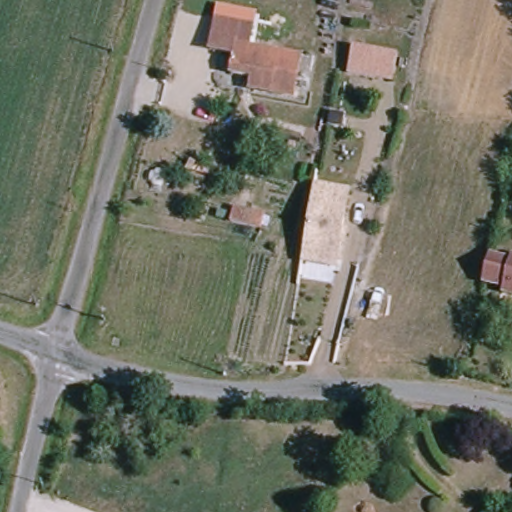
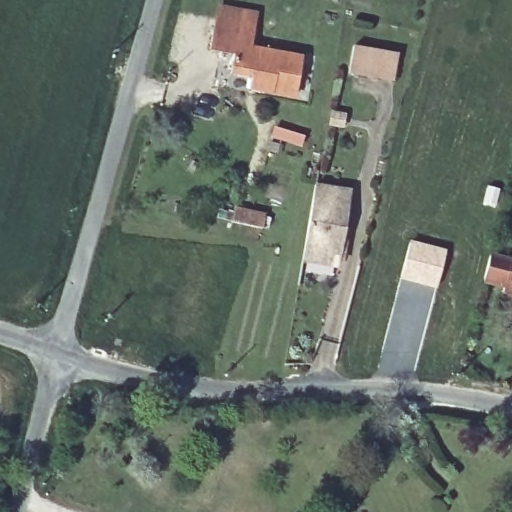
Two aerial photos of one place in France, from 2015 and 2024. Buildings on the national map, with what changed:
unchanged [(211,47),(214,17),(253,21),(251,41),(237,39),(236,50),(211,47)]
unchanged [(302,47),(297,89),(254,84),(255,71),(233,67),(236,50),(237,39),(251,41),(302,47)]
unchanged [(397,54),(392,84),(347,76),(352,47),(397,54)]
unchanged [(299,266),(312,187),(350,193),(336,272),(299,266)]
unchanged [(222,237),(222,219),(256,222),(252,242),(222,237)]
new [(409,240),(447,249),(437,291),(400,280),(409,240)]
unchanged [(512,253),(512,290),(505,288),(507,282),(482,279),(491,250),(512,255),(512,253)]

